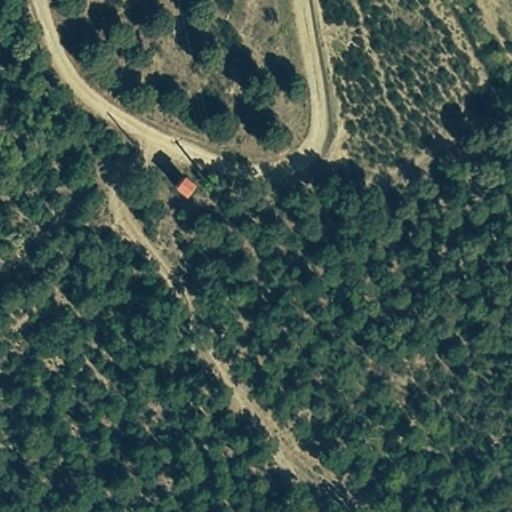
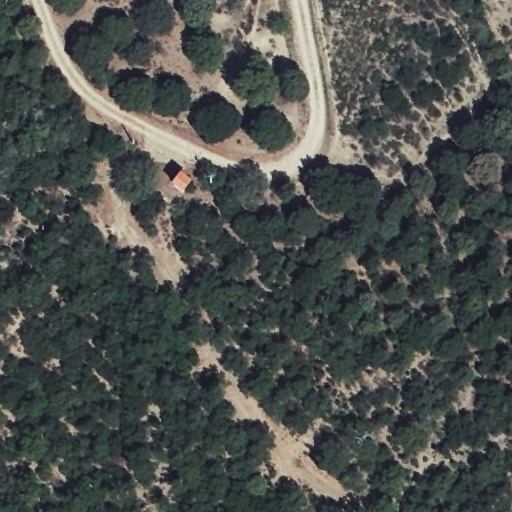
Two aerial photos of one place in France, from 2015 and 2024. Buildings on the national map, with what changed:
unchanged [(177,180),(190,187),(183,200),(171,195),(177,180)]

